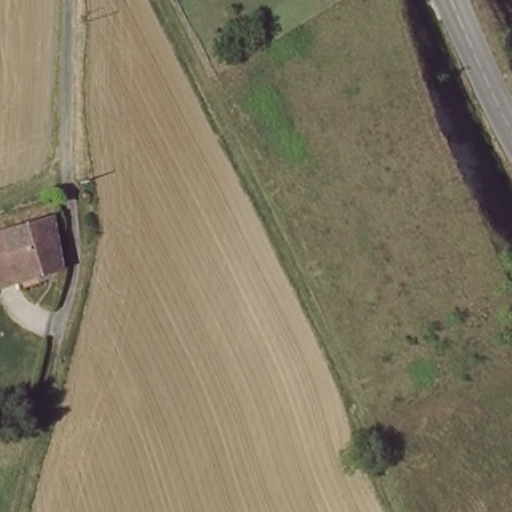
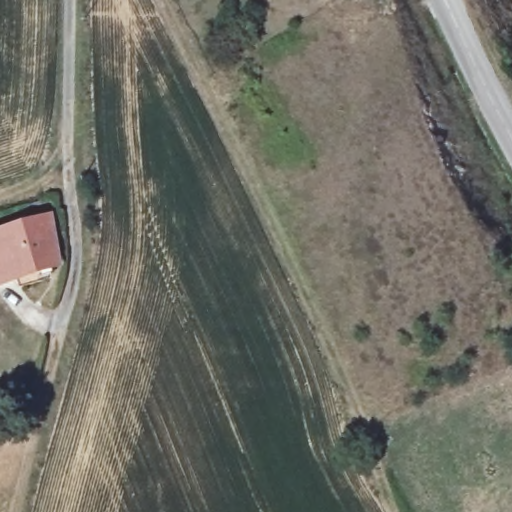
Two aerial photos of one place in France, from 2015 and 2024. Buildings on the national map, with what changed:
unchanged [(55,215),(54,240),(0,254),(0,231),(55,215)]
unchanged [(54,240),(52,267),(0,279),(0,254),(54,240)]

